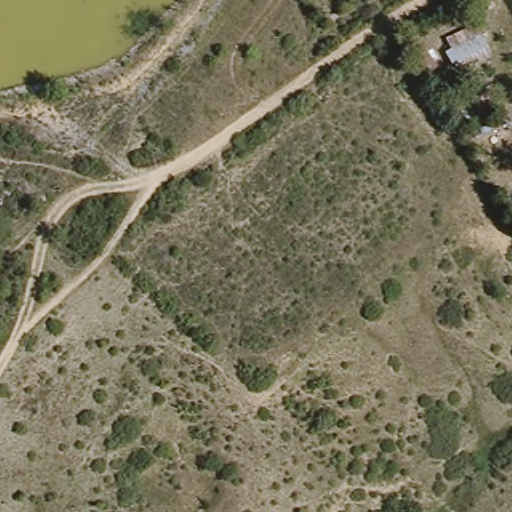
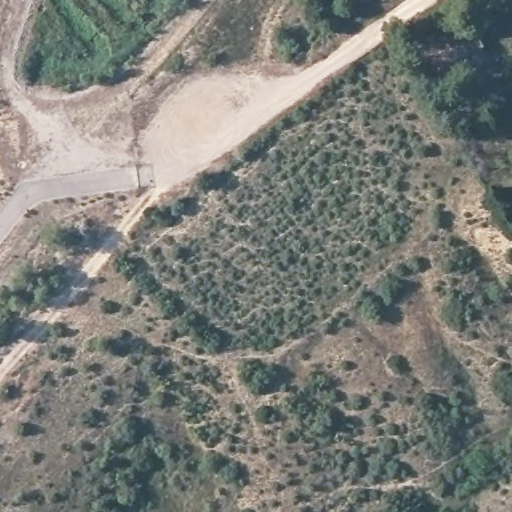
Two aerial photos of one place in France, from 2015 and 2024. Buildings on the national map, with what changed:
unchanged [(452,50),(481,36),(486,46),(496,65),(462,82),(452,62),(457,60),(452,50)]

